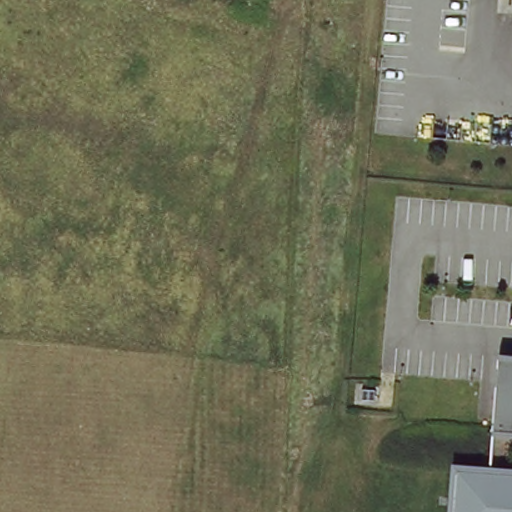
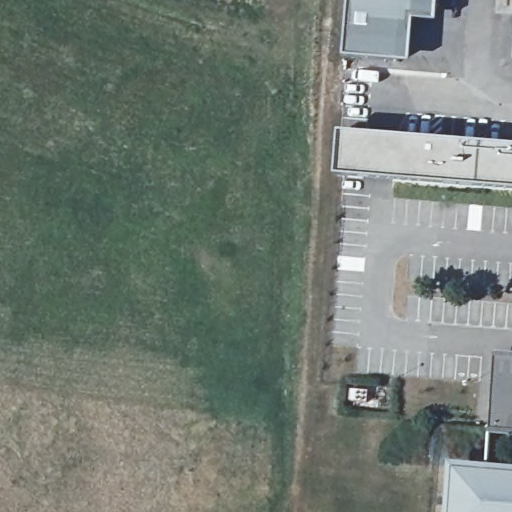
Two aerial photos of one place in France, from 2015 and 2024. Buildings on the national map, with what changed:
new [(345,56),(350,0),(441,0),(440,23),(416,22),(413,64),(345,56)]
new [(342,134),(512,148),(512,191),(339,175),(342,134)]
unchanged [(512,360),(512,512),(484,512),(498,358),(512,360)]

